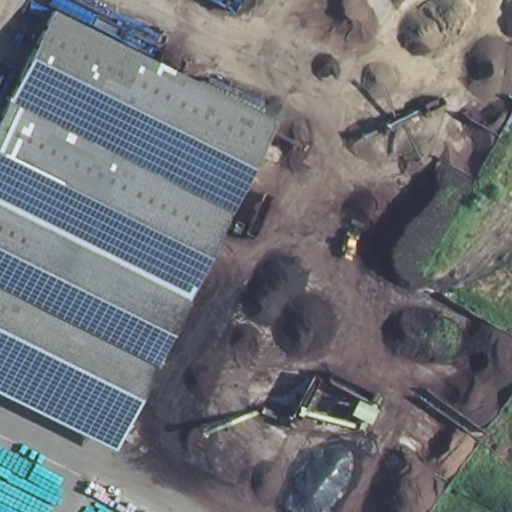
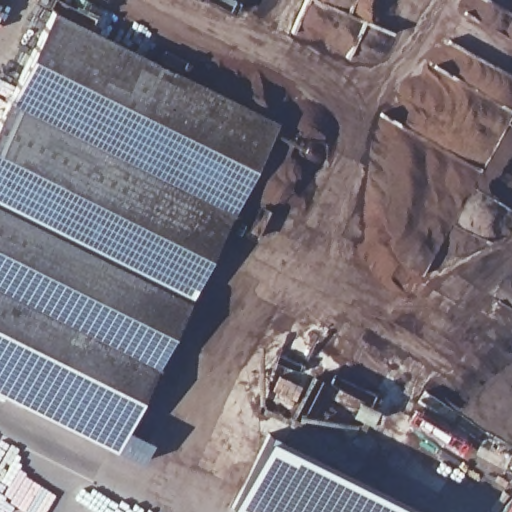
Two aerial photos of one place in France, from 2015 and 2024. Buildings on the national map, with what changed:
unchanged [(278,121),(115,450),(0,393),(0,117),(53,10),(278,121)]
new [(321,375),(361,390),(359,393),(379,407),(368,426),(365,431),(326,423),(300,416),(321,375)]
new [(266,434),(423,512),(237,512),(231,508),(266,434)]

